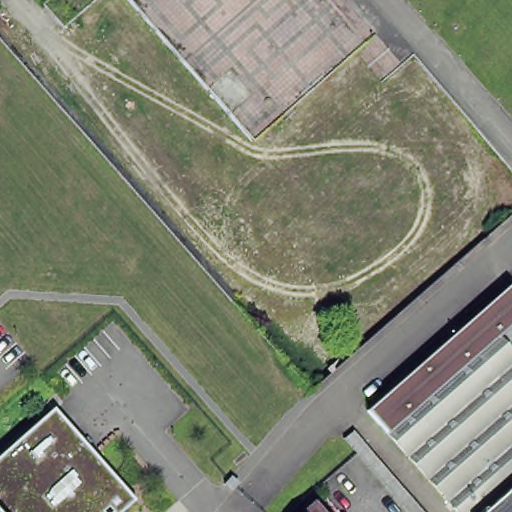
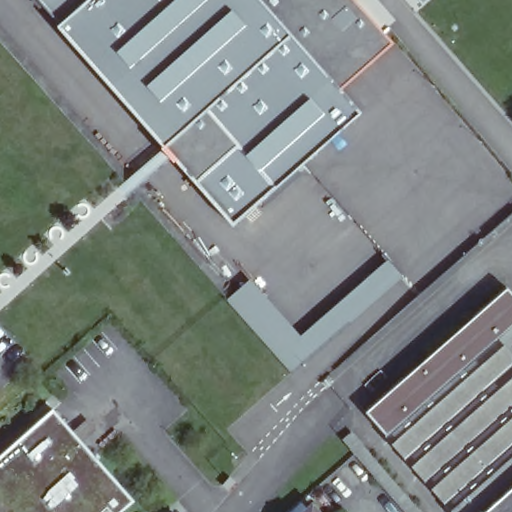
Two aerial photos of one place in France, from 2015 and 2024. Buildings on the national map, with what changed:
new [(162,145),(36,0),(258,0),(289,34),(162,145)]
new [(162,145),(289,34),(258,0),(356,0),(392,41),(340,88),(360,112),(232,224),(162,145)]
new [(227,298),(250,278),(300,334),(387,257),(402,275),(293,372),(227,298)]
unchanged [(470,318),(506,286),(512,293),(512,322),(491,341),(470,318)]
unchanged [(385,434),(365,411),(470,318),(491,341),(385,434)]
unchanged [(385,434),(491,341),(512,322),(512,512),(454,512),(385,434)]
unchanged [(132,500),(119,512),(0,512),(0,455),(51,409),(132,500)]
unchanged [(355,453),(343,440),(352,433),(421,512),(405,512),(355,453)]
unchanged [(316,509),(318,512),(313,512),(316,509)]

